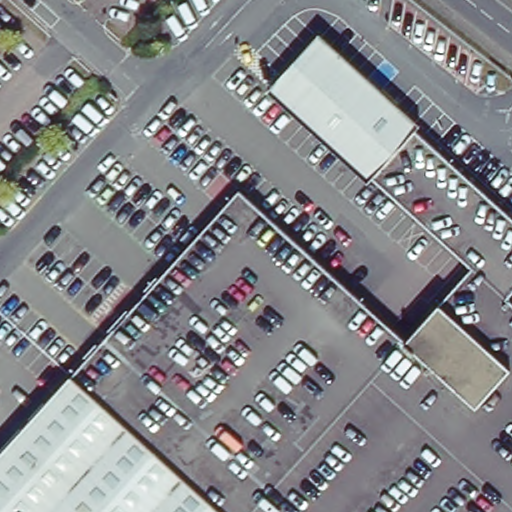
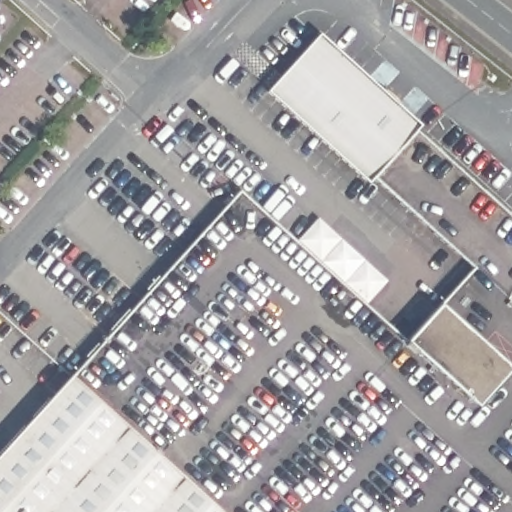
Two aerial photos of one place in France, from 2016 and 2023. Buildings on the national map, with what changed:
unchanged [(0,512),(0,455),(240,190),(340,281),(355,265),(375,283),(361,300),(406,341),(473,268),(372,177),(368,182),(268,92),(320,34),(384,93),(391,86),(401,95),(395,103),(420,125),(416,130),(512,217),(512,294),(508,298),(512,302),(512,512),(0,512)]

